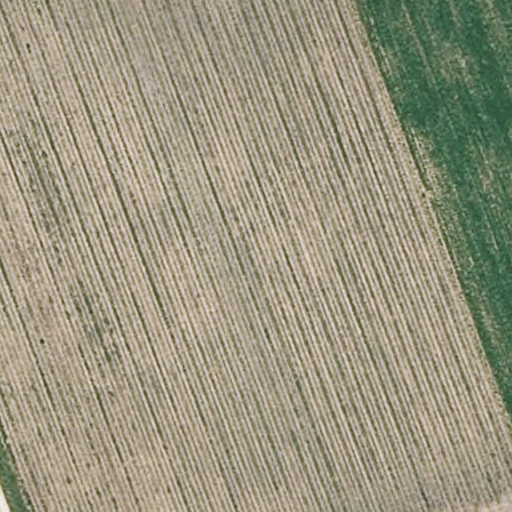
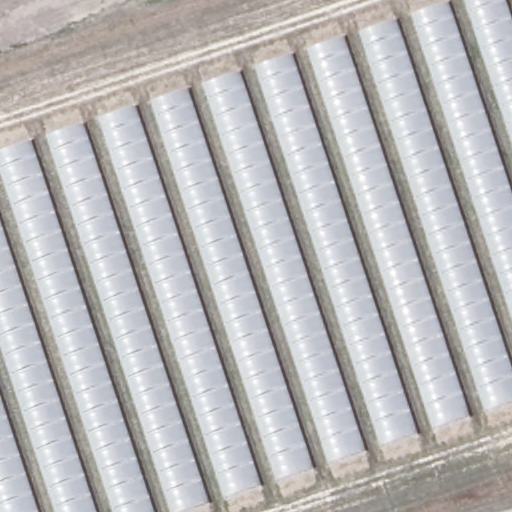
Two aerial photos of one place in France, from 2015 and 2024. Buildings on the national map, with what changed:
new [(0,151),(455,0),(507,0),(512,15),(512,403),(182,512),(0,512),(0,151)]

